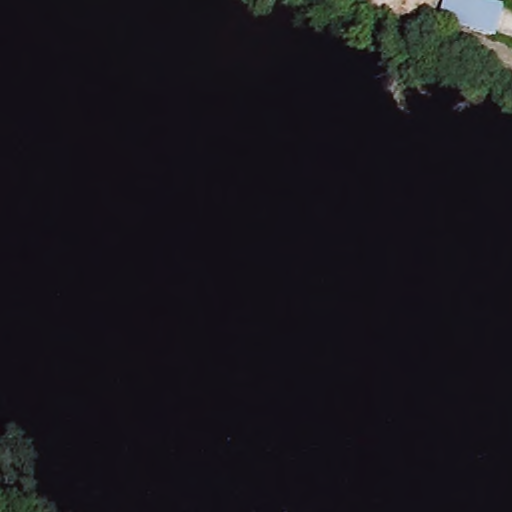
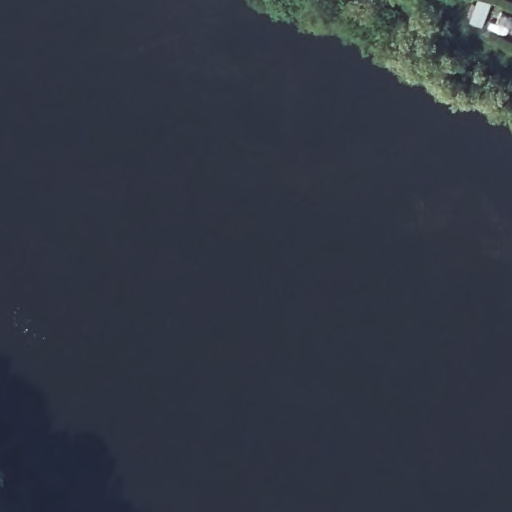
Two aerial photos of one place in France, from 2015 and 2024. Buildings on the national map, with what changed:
unchanged [(451,0),(465,0),(508,13),(500,37),(443,24),(451,0)]

